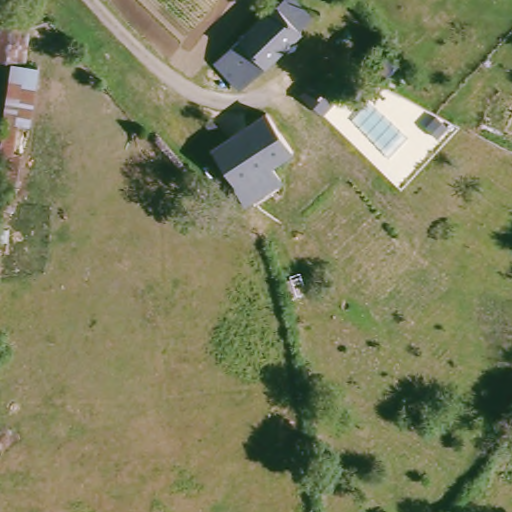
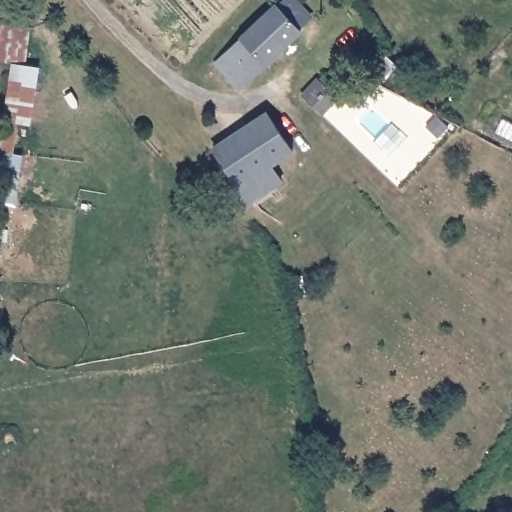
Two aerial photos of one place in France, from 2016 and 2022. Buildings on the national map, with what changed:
unchanged [(255,83),(240,70),(230,77),(218,66),(290,0),(296,0),(317,24),(255,83)]
unchanged [(0,69),(0,29),(34,31),(34,69),(43,71),(36,130),(21,128),(19,158),(27,159),(22,212),(2,209),(16,66),(0,69)]
unchanged [(329,73),(345,93),(328,108),(310,88),(329,73)]
unchanged [(270,114),(300,150),(279,165),(290,182),(257,205),(215,153),(270,114)]

